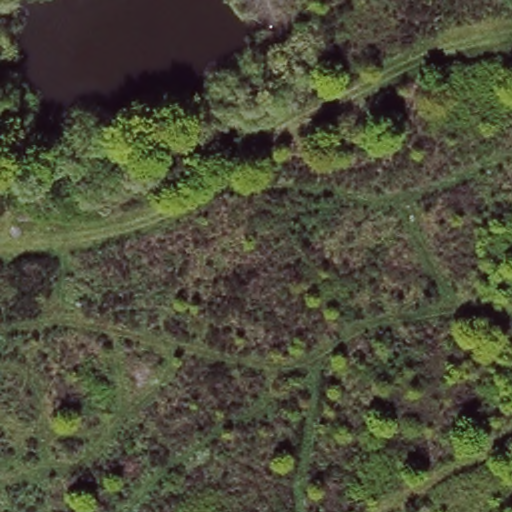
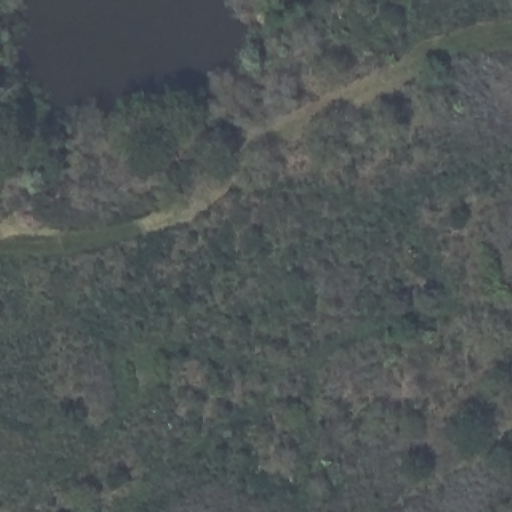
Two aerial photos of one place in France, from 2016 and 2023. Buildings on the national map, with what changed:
[]

